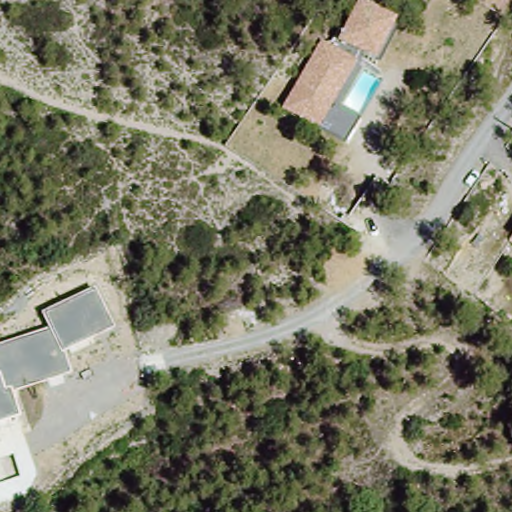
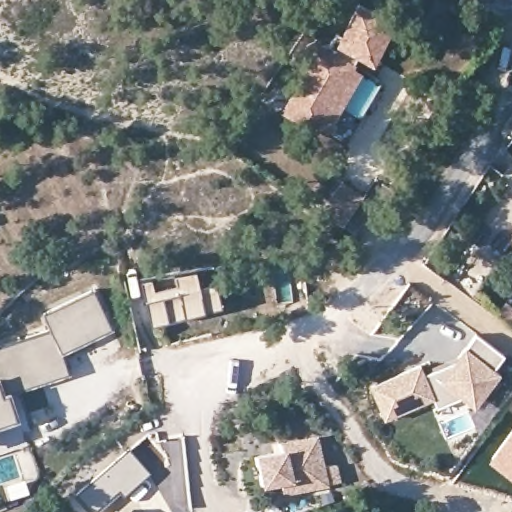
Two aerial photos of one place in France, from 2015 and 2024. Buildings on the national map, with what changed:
unchanged [(335,46),(358,0),(359,0),(395,19),(373,62),(360,56),(319,130),(281,110),(322,41),(335,46)]
new [(343,178),(359,189),(337,222),(321,211),(343,178)]
unchanged [(507,242),(512,235),(512,245),(507,242)]
new [(269,271),(266,255),(282,253),(284,268),(269,271)]
new [(197,272),(199,287),(216,284),(220,309),(148,321),(141,282),(197,272)]
unchanged [(43,313),(96,287),(114,329),(67,352),(73,372),(13,390),(21,416),(0,423),(0,343),(50,328),(43,313)]
new [(508,307),(512,310),(512,325),(500,318),(508,307)]
new [(460,393),(435,404),(432,394),(384,416),(370,384),(419,363),(422,371),(454,357),(474,330),(502,350),(492,364),(497,369),(480,392),(474,402),(460,393)]
new [(492,453),(512,425),(512,468),(492,453)]
new [(282,479),(264,482),(259,454),(286,450),(284,442),(320,436),(325,465),(338,463),(341,481),(292,488),(284,490),(282,479)]
new [(129,450),(150,475),(122,499),(117,493),(94,512),(90,512),(79,492),(129,450)]

